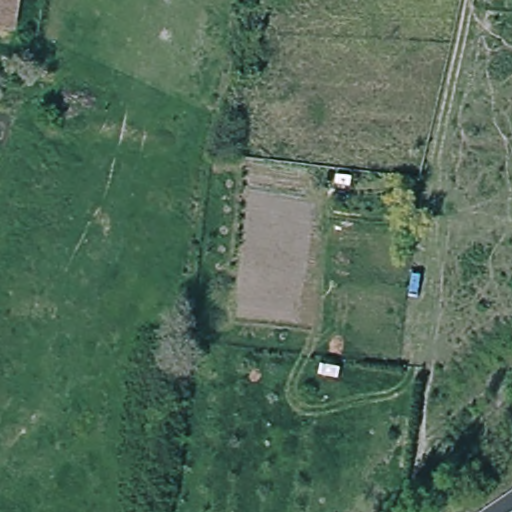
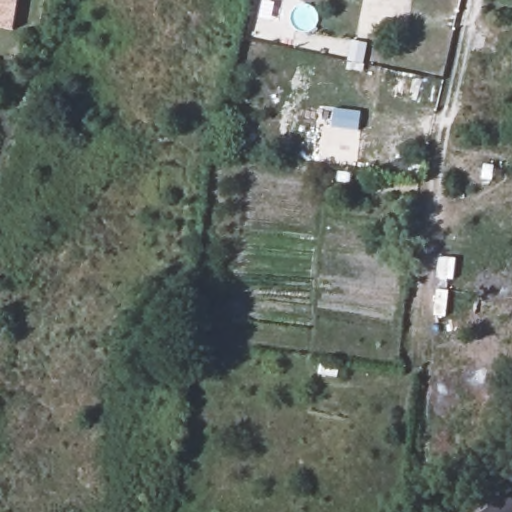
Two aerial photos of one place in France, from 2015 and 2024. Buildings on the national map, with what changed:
unchanged [(15,25),(0,23),(0,0),(18,0),(15,25)]

